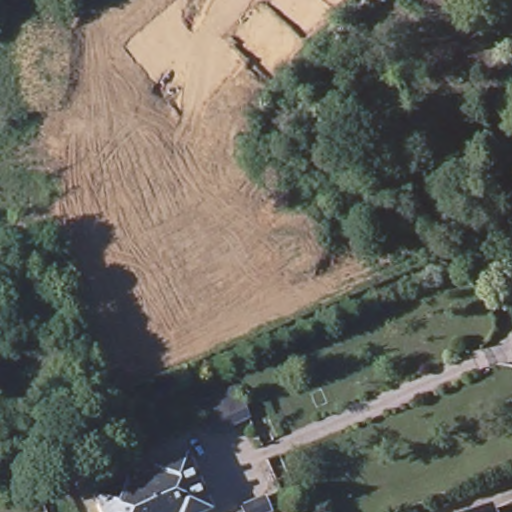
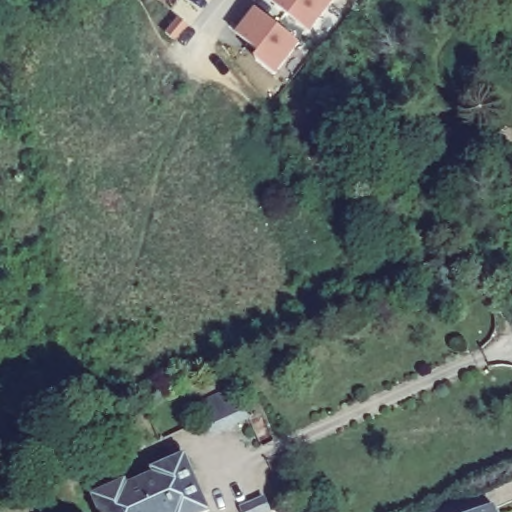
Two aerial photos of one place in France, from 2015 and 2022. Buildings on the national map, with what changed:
new [(333,3),(309,31),(271,0),(335,0),(333,3)]
new [(254,56),(253,45),(236,32),(257,9),(299,43),(276,75),(254,56)]
unchanged [(233,432),(209,442),(204,429),(228,418),(233,432)]
unchanged [(98,512),(93,500),(120,487),(123,492),(158,476),(155,471),(184,458),(208,512),(98,512)]
unchanged [(262,499),(268,512),(239,512),(238,510),(262,499)]
unchanged [(495,512),(487,512),(494,509),(495,512)]

